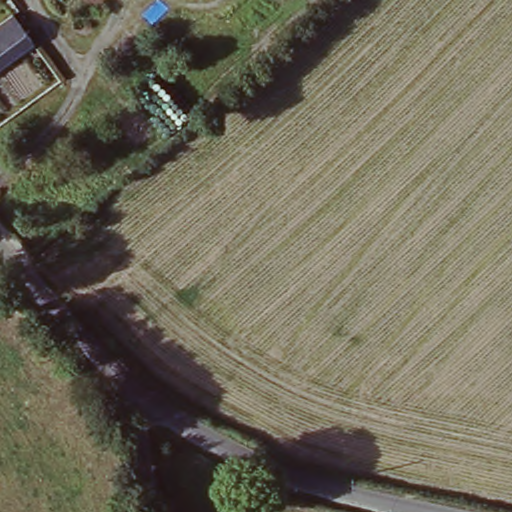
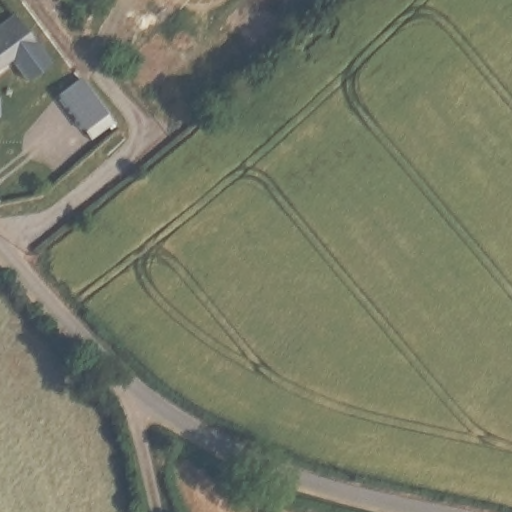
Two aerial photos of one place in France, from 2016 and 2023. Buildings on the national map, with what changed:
unchanged [(46,60),(27,80),(10,56),(0,65),(0,22),(12,12),(46,60)]
new [(80,76),(115,124),(90,140),(58,93),(80,76)]

